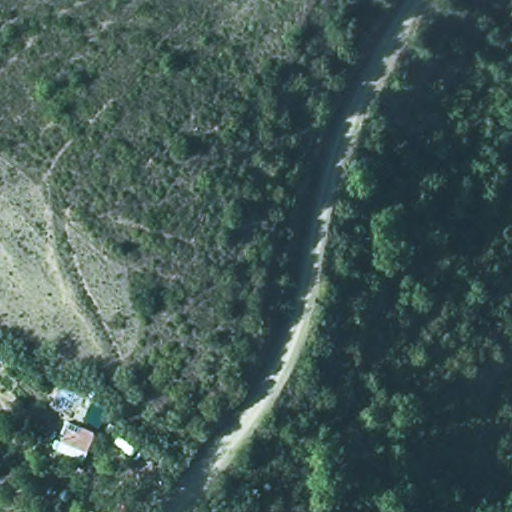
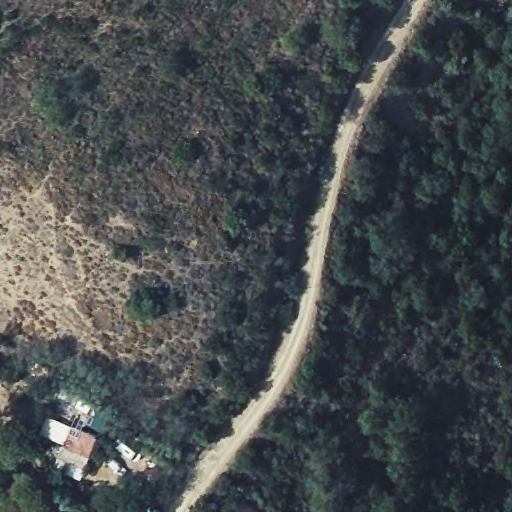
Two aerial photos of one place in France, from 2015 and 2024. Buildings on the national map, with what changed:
unchanged [(67,383),(99,405),(86,420),(50,404),(67,383)]
unchanged [(63,420),(98,435),(83,466),(52,452),(63,420)]

